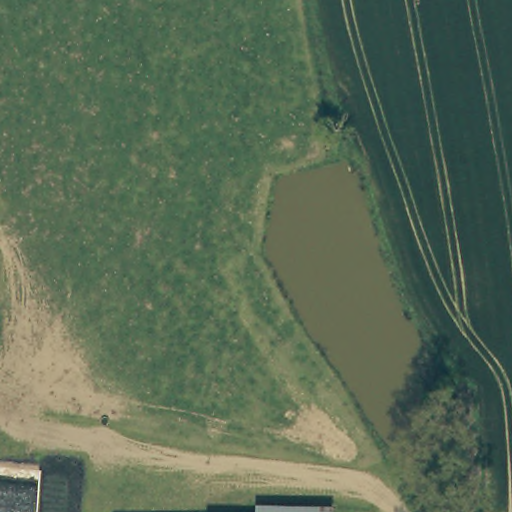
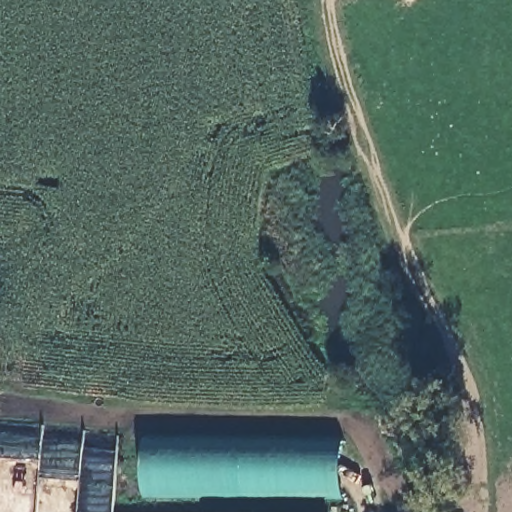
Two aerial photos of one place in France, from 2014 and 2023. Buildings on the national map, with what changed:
new [(342,496),(142,492),(142,438),(343,442),(342,496)]

